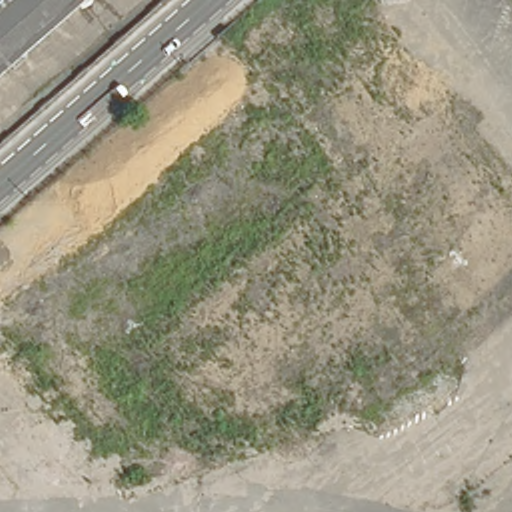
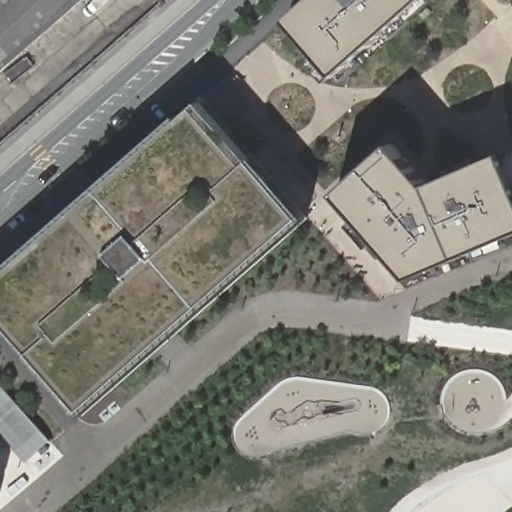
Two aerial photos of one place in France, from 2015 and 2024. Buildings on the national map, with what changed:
unchanged [(15,44),(0,26),(0,2),(2,0),(65,0),(15,44)]
new [(423,0),(338,75),(288,19),(310,0),(423,0)]
unchanged [(0,57),(0,26),(15,44),(0,57)]
new [(0,316),(0,275),(199,100),(302,218),(83,410),(0,316)]
new [(336,195),(391,144),(429,185),(501,155),(512,181),(512,234),(410,279),(336,195)]
new [(501,155),(512,151),(512,181),(501,155)]
new [(0,384),(48,439),(25,460),(0,431),(0,384)]

